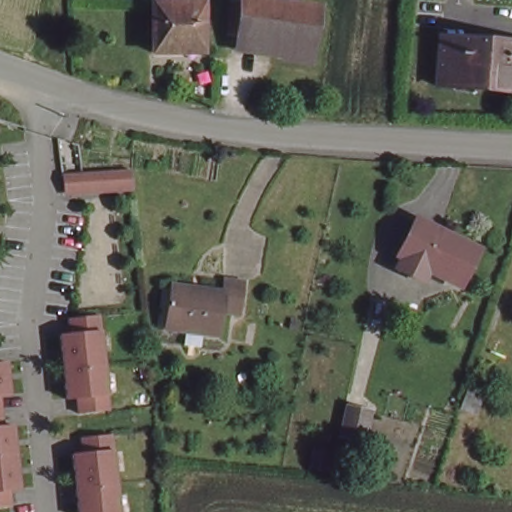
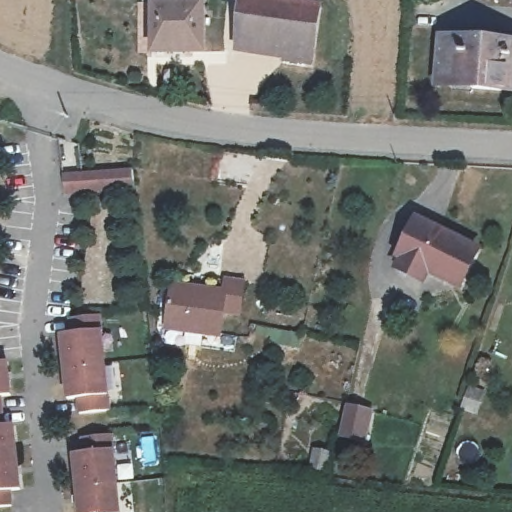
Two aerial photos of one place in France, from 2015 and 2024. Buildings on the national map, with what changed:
unchanged [(226,0),(253,0),(277,4),(274,40),(224,36),(226,0)]
unchanged [(326,64),(310,63),(287,61),(288,42),(274,40),(277,4),(278,4),(315,7),(333,8),(326,64)]
unchanged [(206,49),(181,46),(153,42),(152,40),(155,7),(183,10),(209,12),(206,49)]
unchanged [(438,36),(512,42),(512,96),(435,88),(438,36)]
unchanged [(128,168),(131,188),(126,188),(68,192),(67,172),(128,168)]
unchanged [(403,260),(421,227),(480,260),(461,292),(403,260)]
unchanged [(219,313),(217,339),(167,332),(171,289),(221,296),(223,281),(240,283),(237,315),(219,313)]
unchanged [(100,313),(106,374),(110,408),(102,409),(80,411),(78,396),(68,397),(61,332),(72,332),(70,316),(100,313)]
unchanged [(7,360),(11,393),(1,394),(4,423),(14,422),(20,487),(10,488),(11,503),(0,505),(0,360),(7,360)]
unchanged [(457,413),(462,397),(476,401),(471,417),(457,413)]
unchanged [(342,441),(349,411),(370,415),(363,445),(342,441)]
unchanged [(84,451),(82,435),(99,433),(112,432),(120,512),(80,512),(74,452),(84,451)]
unchanged [(305,473),(310,453),(324,457),(320,477),(305,473)]

